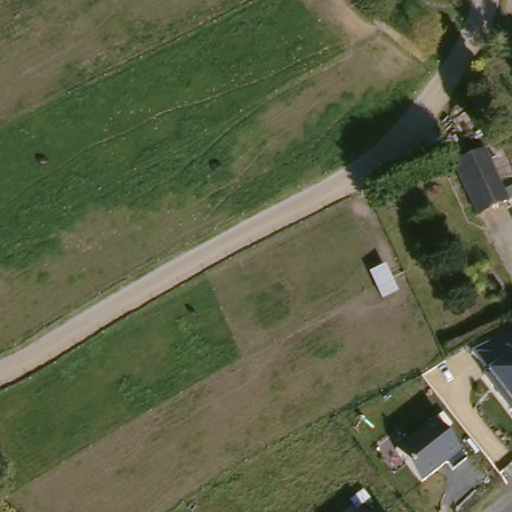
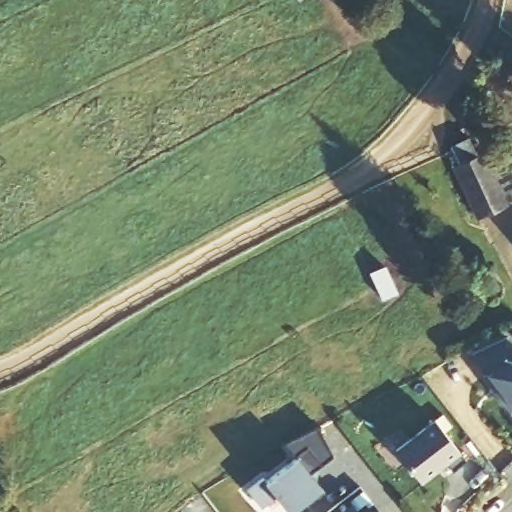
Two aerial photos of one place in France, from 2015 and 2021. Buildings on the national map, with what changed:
unchanged [(486,155),(512,203),(512,204),(484,219),(457,170),(486,155)]
unchanged [(505,335),(512,344),(512,410),(471,356),(505,335)]
unchanged [(437,418),(464,458),(450,470),(445,463),(416,481),(396,447),(437,418)]
new [(333,455),(313,474),(321,486),(288,512),(275,495),(261,508),(247,490),(264,477),(266,480),(296,457),(285,442),(319,427),(333,455)]
unchanged [(375,504),(382,512),(365,512),(375,504)]

